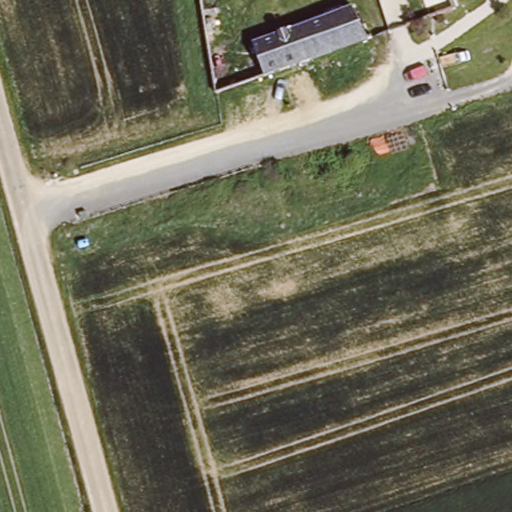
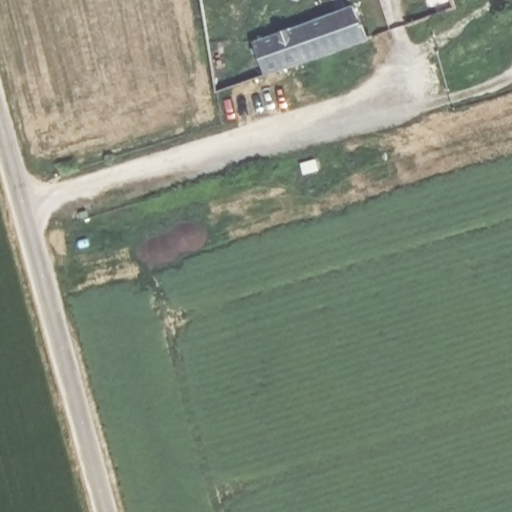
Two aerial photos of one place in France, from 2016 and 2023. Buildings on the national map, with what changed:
unchanged [(270,74),(257,36),(356,1),(369,39),(270,74)]

